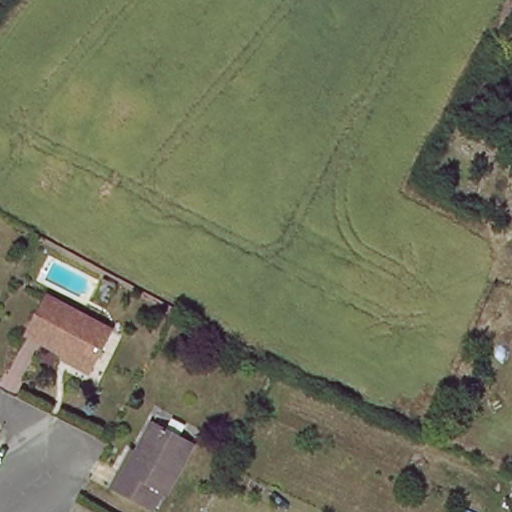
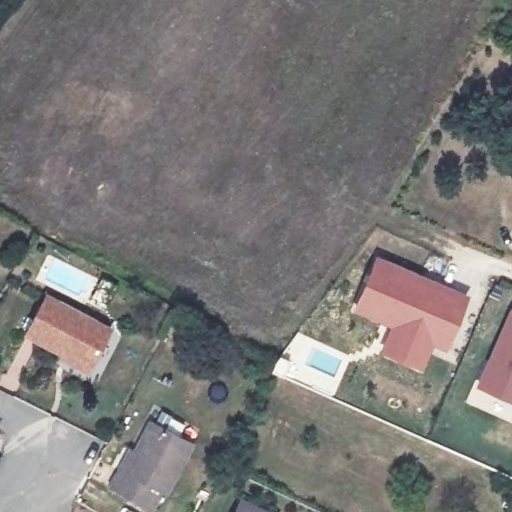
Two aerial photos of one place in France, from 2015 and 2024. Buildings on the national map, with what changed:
new [(471,297),(447,352),(435,345),(422,371),(379,352),(390,328),(352,309),(377,256),(471,297)]
unchanged [(65,359),(68,353),(29,332),(49,295),(113,329),(93,367),(90,373),(65,359)]
new [(512,403),(475,386),(511,308),(512,308),(512,403)]
unchanged [(191,438),(164,489),(159,487),(149,507),(108,486),(118,465),(123,467),(149,416),(191,438)]
new [(234,512),(242,499),(273,512),(234,512)]

